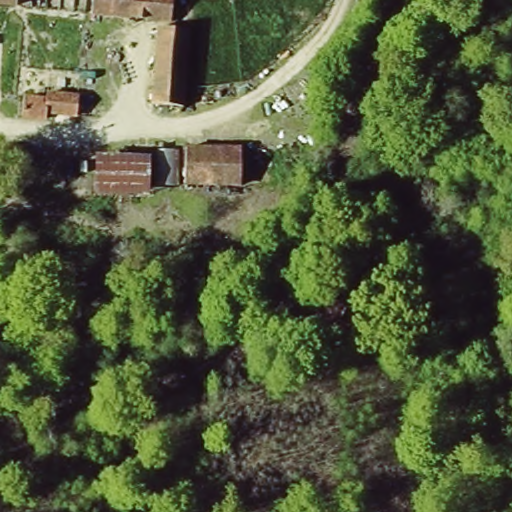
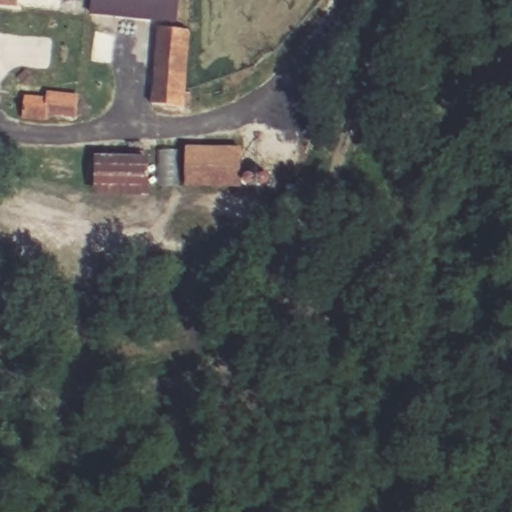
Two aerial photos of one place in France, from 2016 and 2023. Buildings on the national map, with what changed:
unchanged [(14,0),(12,7),(0,5),(0,0),(14,0)]
unchanged [(94,12),(95,0),(174,0),(172,22),(94,12)]
unchanged [(185,105),(154,106),(161,28),(189,32),(185,105)]
unchanged [(23,116),(25,90),(78,92),(76,120),(23,116)]
unchanged [(236,184),(186,184),(187,143),(236,143),(236,184)]
unchanged [(94,151),(141,151),(142,190),(95,190),(94,151)]

